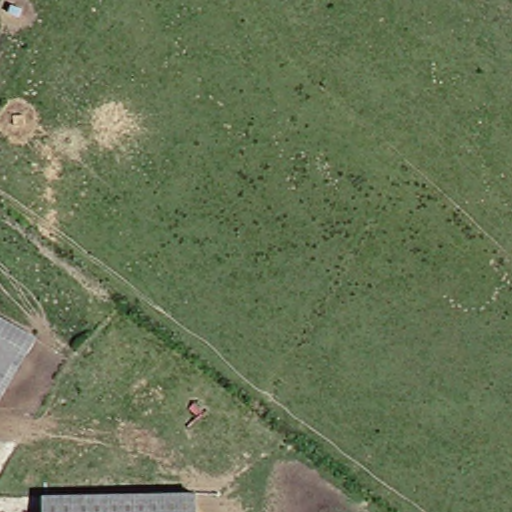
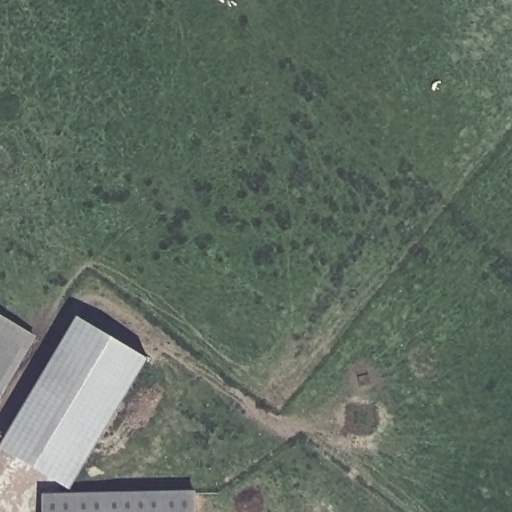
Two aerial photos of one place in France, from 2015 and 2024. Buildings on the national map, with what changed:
unchanged [(30,335),(0,387),(0,316),(30,335)]
new [(77,316),(146,360),(65,489),(0,448),(0,438),(77,316)]
unchanged [(195,502),(195,512),(44,512),(45,499),(195,502)]

